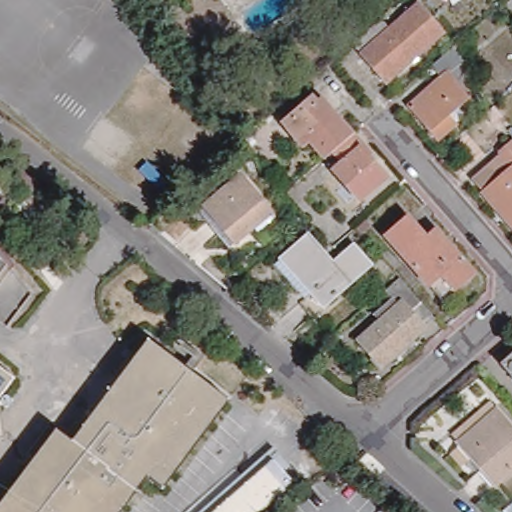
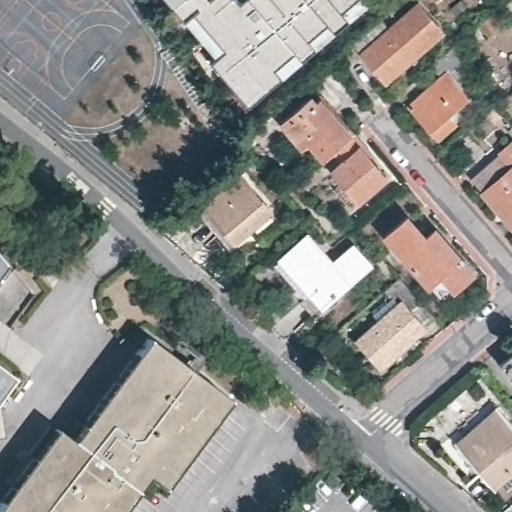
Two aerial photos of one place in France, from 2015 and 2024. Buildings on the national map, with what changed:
new [(242,3),(246,0),(370,0),(373,3),(250,105),(213,62),(217,58),(171,0),(238,0),(242,3)]
unchanged [(509,0),(512,0),(512,10),(505,3),(509,0)]
unchanged [(384,21),(395,33),(406,24),(403,21),(422,3),(447,31),(391,81),(358,43),(384,21)]
unchanged [(457,122),(440,141),(408,107),(442,77),(431,65),(452,46),(478,75),(463,88),(470,95),(457,108),(464,116),(457,122)]
unchanged [(315,141),(308,147),(290,127),(297,121),(292,116),(312,98),(317,104),(325,97),(358,133),(338,151),(329,159),(315,141)]
unchanged [(370,146),(367,149),(392,174),(364,198),(338,170),(348,162),(338,151),(358,133),(370,146)]
unchanged [(505,148),(512,142),(512,155),(505,148)]
unchanged [(487,188),(478,177),(500,158),(510,168),(512,166),(512,214),(487,188)]
unchanged [(280,208),(240,244),(205,206),(247,170),(280,208)]
unchanged [(407,205),(425,226),(435,218),(475,262),(443,291),(385,225),(407,205)]
unchanged [(295,247),(318,225),(343,253),(362,235),(380,255),(322,306),(310,293),(315,288),(285,256),(295,247)]
unchanged [(20,339),(0,324),(0,255),(45,306),(20,339)]
unchanged [(440,317),(429,325),(432,328),(386,367),(362,338),(402,303),(390,290),(405,277),(440,317)]
unchanged [(75,440),(152,338),(235,399),(168,489),(152,477),(125,512),(0,512),(0,508),(60,428),(75,440)]
unchanged [(512,356),(512,370),(505,362),(512,356)]
unchanged [(0,395),(0,368),(13,378),(0,395)]
unchanged [(0,400),(5,435),(0,436),(0,400)]
unchanged [(502,404),(512,416),(512,474),(498,485),(460,441),(502,404)]

